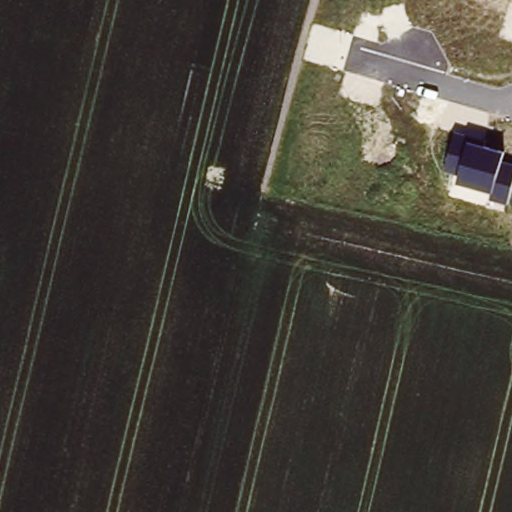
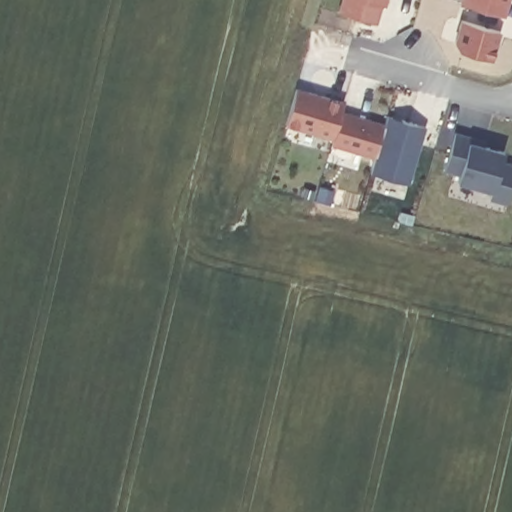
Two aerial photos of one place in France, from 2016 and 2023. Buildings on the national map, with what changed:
new [(386,0),(384,7),(380,5),(375,24),(334,11),(338,0),(386,0)]
new [(294,86),(344,100),(342,110),(381,122),(384,115),(426,127),(408,184),(366,172),(371,159),(380,127),(336,114),(329,138),(284,124),(294,86)]
new [(336,114),(380,127),(371,159),(327,147),(336,114)]
unchanged [(489,199),(490,192),(457,183),(460,173),(444,169),(455,130),(470,134),(469,140),(504,149),(502,160),(512,164),(512,188),(507,203),(489,199)]

